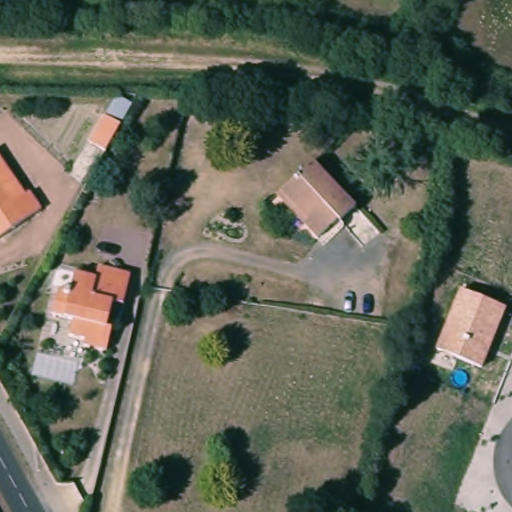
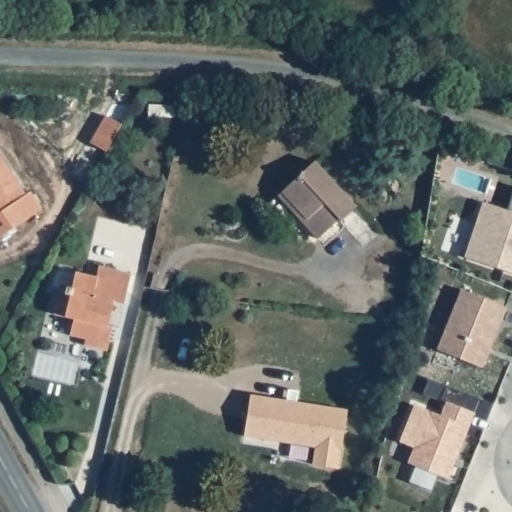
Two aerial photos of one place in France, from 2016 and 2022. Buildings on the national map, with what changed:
unchanged [(124,119),(110,146),(94,139),(109,112),(124,119)]
unchanged [(15,173),(30,195),(34,193),(44,210),(0,241),(0,151),(15,173)]
unchanged [(316,165),(357,207),(320,243),(303,226),(309,220),(285,195),(316,165)]
new [(512,271),(465,255),(483,200),(512,210),(512,271)]
unchanged [(72,295),(77,275),(100,280),(102,269),(133,277),(124,309),(110,304),(102,331),(110,332),(104,356),(87,351),(89,344),(73,339),(77,322),(57,317),(63,293),(72,295)]
unchanged [(480,364),(437,347),(461,287),(505,305),(480,364)]
new [(290,400),(292,389),(302,391),(300,402),(351,410),(342,468),(317,464),(320,447),(249,436),(255,395),(290,400)]
new [(407,463),(412,447),(400,441),(413,403),(439,413),(445,401),(475,413),(449,479),(407,463)]

